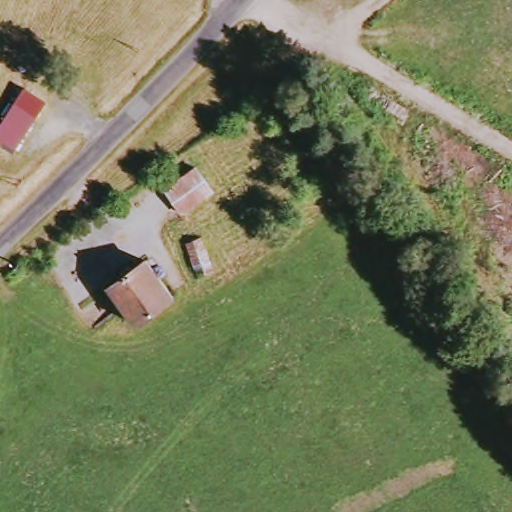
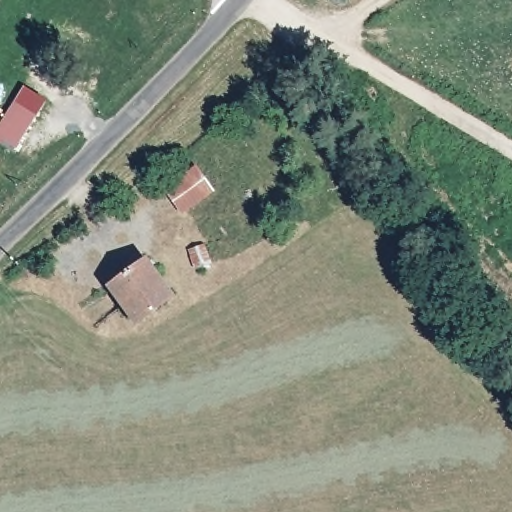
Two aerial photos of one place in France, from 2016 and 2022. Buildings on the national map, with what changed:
unchanged [(0,125),(17,102),(37,117),(14,149),(0,139),(0,125)]
unchanged [(161,190),(196,165),(215,192),(182,217),(161,190)]
unchanged [(147,260),(172,293),(134,323),(109,289),(147,260)]

